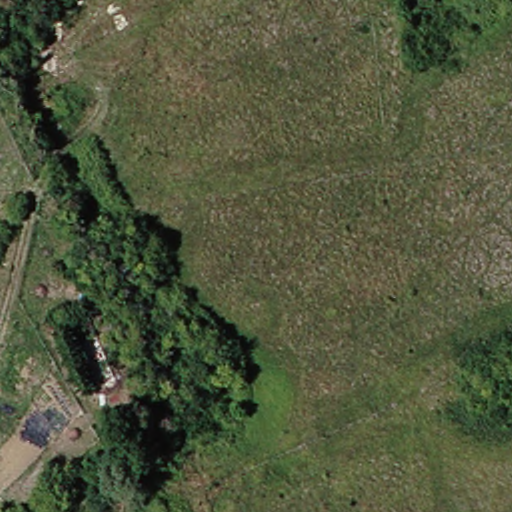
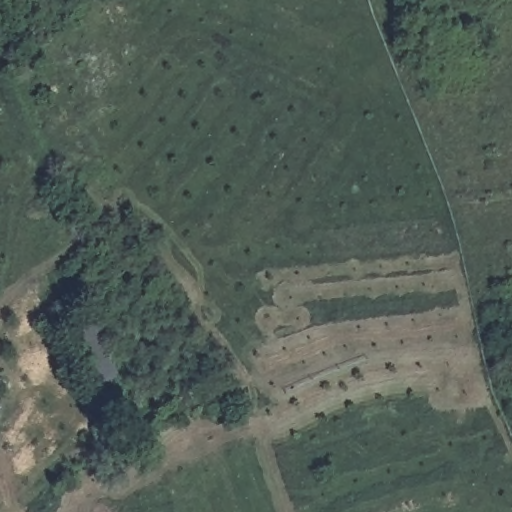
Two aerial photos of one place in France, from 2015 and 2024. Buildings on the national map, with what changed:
unchanged [(97,386),(73,331),(99,322),(121,376),(97,386)]

